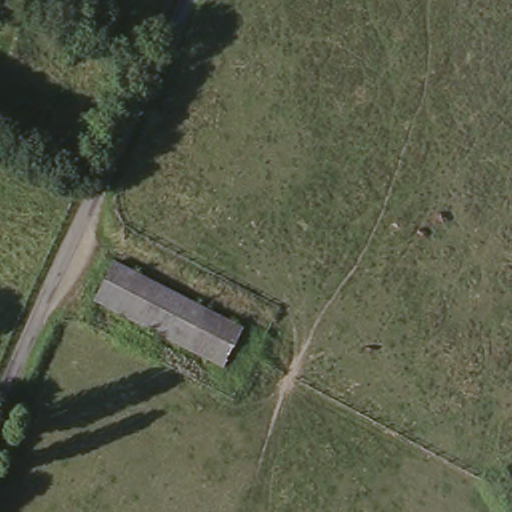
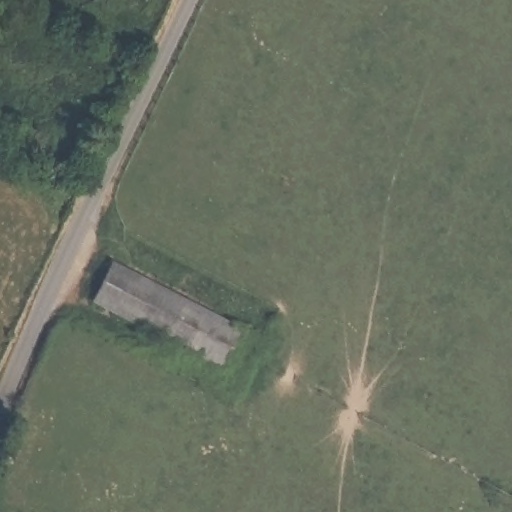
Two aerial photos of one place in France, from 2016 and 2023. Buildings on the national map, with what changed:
unchanged [(242,322),(225,360),(101,303),(118,264),(242,322)]

